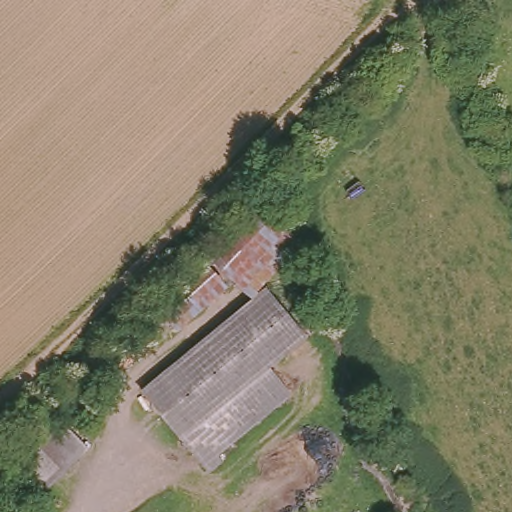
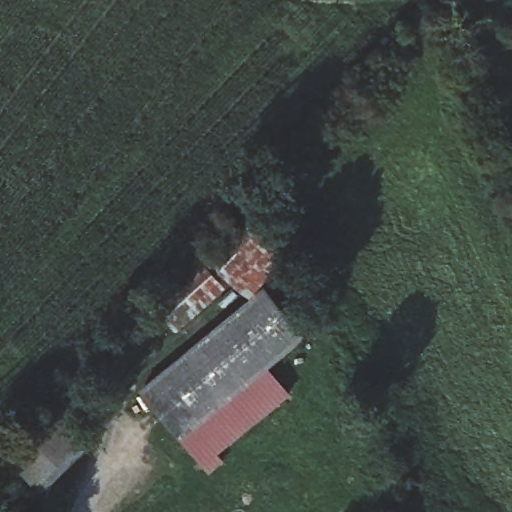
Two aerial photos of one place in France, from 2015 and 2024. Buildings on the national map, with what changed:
unchanged [(193,252),(242,199),(298,241),(249,299),(193,252)]
unchanged [(176,334),(152,305),(200,261),(225,289),(176,334)]
unchanged [(268,285),(309,331),(270,365),(290,390),(207,462),(145,390),(268,285)]
unchanged [(10,458),(60,415),(91,449),(40,493),(10,458)]

